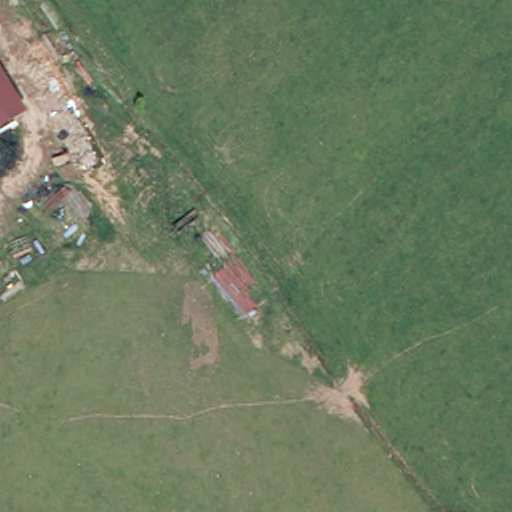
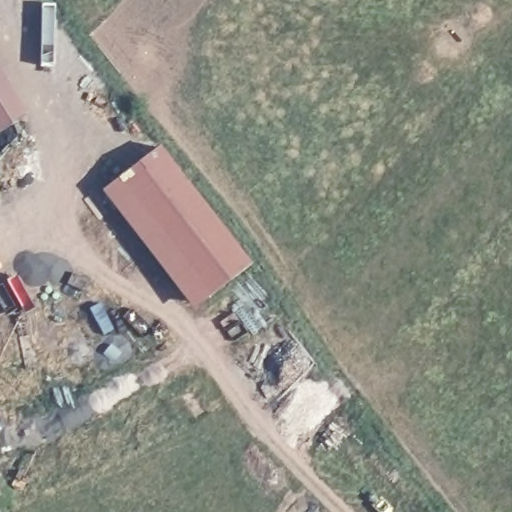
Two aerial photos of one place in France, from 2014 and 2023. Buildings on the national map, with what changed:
unchanged [(28,113),(0,130),(0,67),(28,113)]
new [(252,264),(193,309),(102,190),(161,145),(252,264)]

